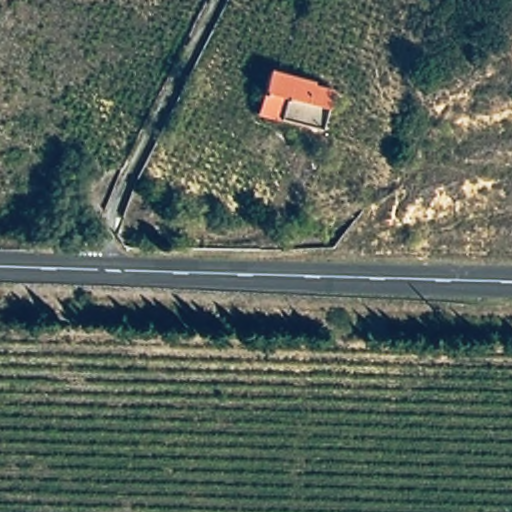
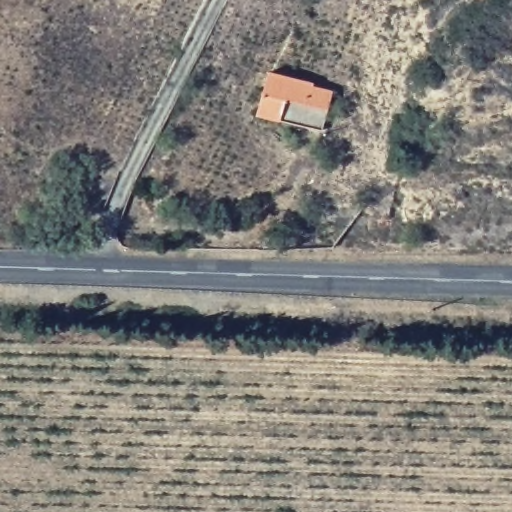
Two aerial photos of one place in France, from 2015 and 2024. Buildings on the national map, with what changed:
unchanged [(259,117),(269,72),(315,82),(315,87),(332,91),(323,132),(280,122),(259,117)]

